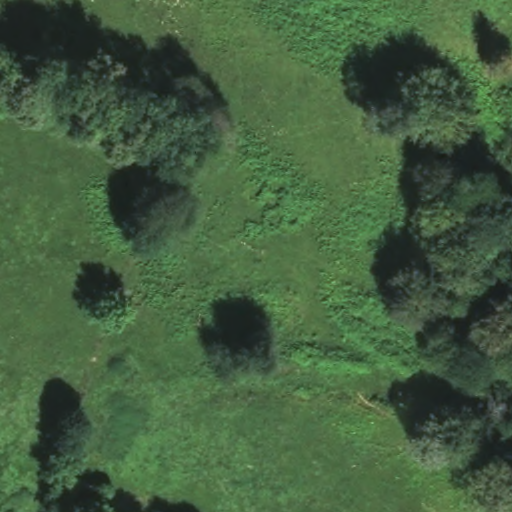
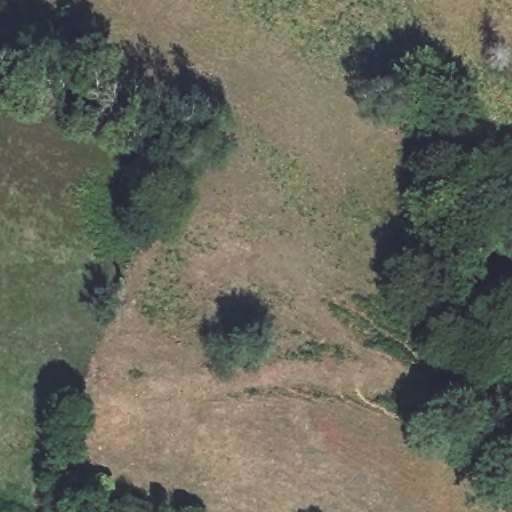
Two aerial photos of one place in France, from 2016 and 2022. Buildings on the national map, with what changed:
unchanged [(109,478),(105,498),(63,493),(68,470),(109,478)]
unchanged [(156,498),(153,512),(127,512),(131,495),(156,498)]

